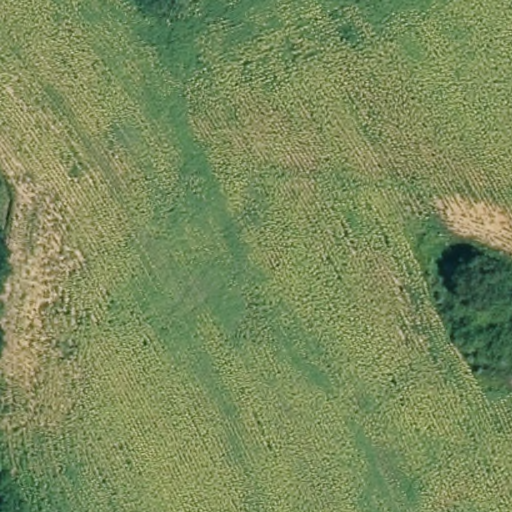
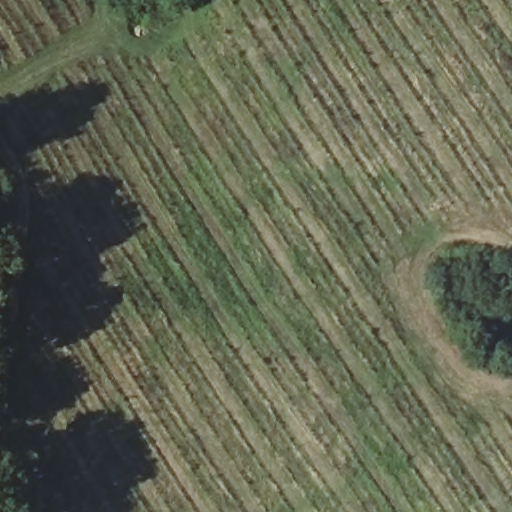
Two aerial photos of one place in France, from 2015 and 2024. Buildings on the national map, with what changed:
[]

